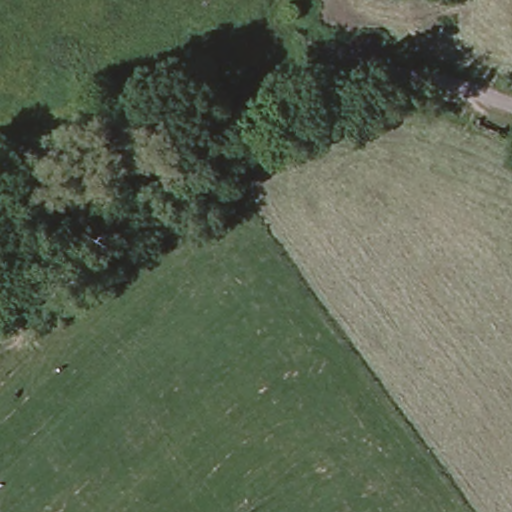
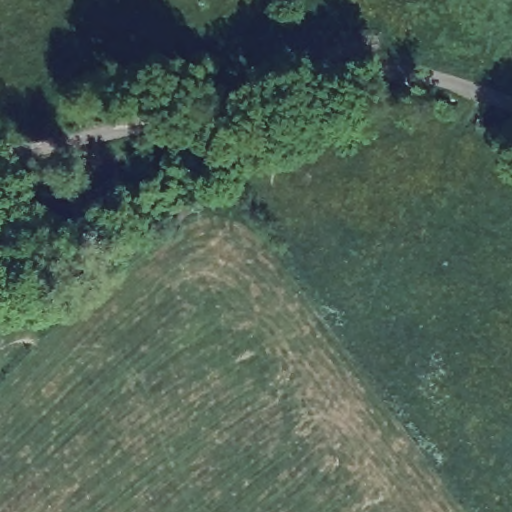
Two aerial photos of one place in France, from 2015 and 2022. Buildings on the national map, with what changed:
[]

